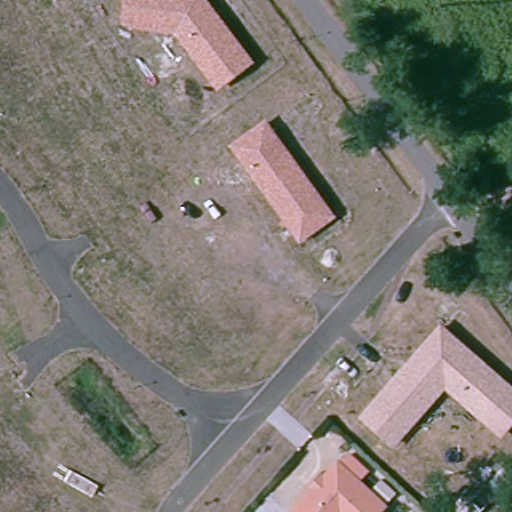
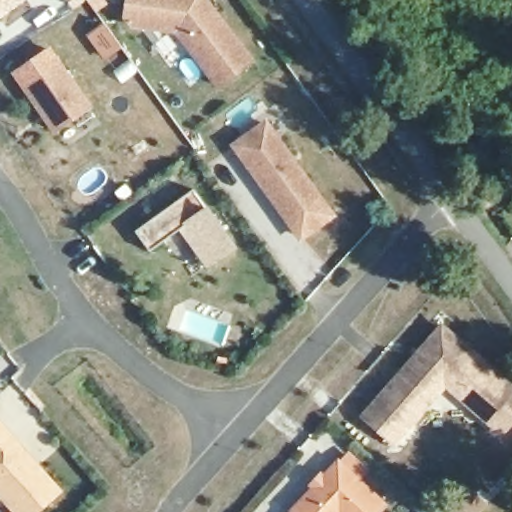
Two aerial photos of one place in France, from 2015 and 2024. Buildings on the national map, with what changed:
new [(0,18),(0,0),(25,0),(0,18)]
new [(73,9),(67,0),(86,0),(73,9)]
new [(108,4),(96,12),(87,0),(106,0),(108,4)]
unchanged [(256,62),(217,90),(175,33),(123,28),(126,0),(209,0),(256,62)]
new [(93,107),(53,134),(20,87),(60,60),(93,107)]
unchanged [(229,146),(267,116),(338,217),(299,243),(229,146)]
new [(209,205),(238,247),(207,268),(181,228),(149,251),(135,231),(193,189),(209,205)]
unchanged [(445,379),(438,379),(427,391),(428,398),(389,441),(359,413),(439,326),(512,392),(512,417),(497,434),(460,400),(460,393),(445,379)]
new [(39,449),(81,496),(63,512),(33,512),(0,475),(0,459),(5,455),(27,435),(39,449)]
unchanged [(377,512),(344,512),(342,511),(342,512),(303,512),(295,505),(318,482),(315,479),(324,470),(327,473),(342,458),(387,502),(377,512)]
unchanged [(303,512),(288,512),(295,505),(303,512)]
unchanged [(512,511),(512,512),(505,512),(509,508),(512,511)]

